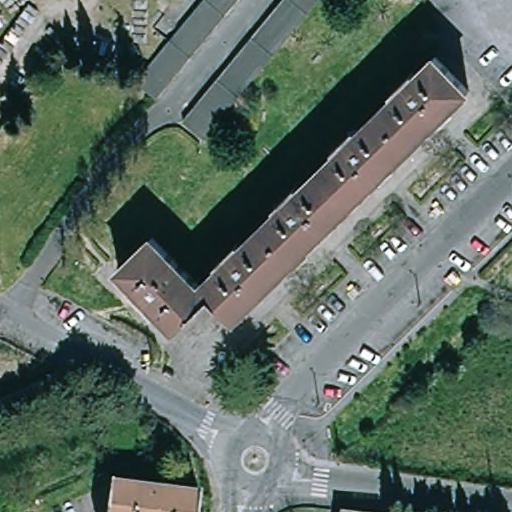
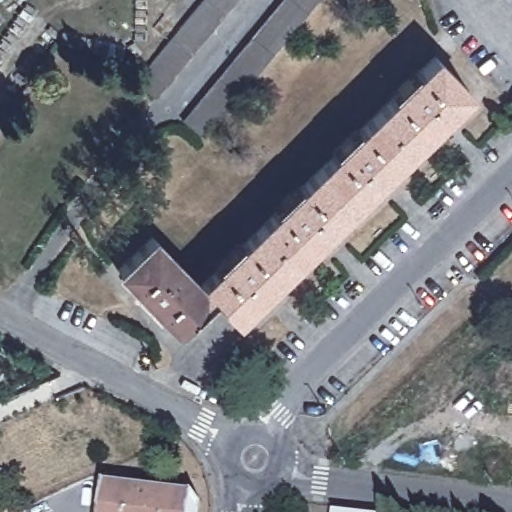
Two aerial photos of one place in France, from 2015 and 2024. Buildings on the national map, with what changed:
unchanged [(140,84),(150,71),(206,0),(241,0),(177,81),(162,100),(140,84)]
unchanged [(207,96),(283,0),(322,0),(231,115),(212,139),(188,120),(207,96)]
unchanged [(470,91),(235,320),(212,296),(176,330),(118,271),(154,236),(201,284),(436,56),(470,91)]
unchanged [(109,490),(198,501),(197,512),(106,512),(109,490)]

